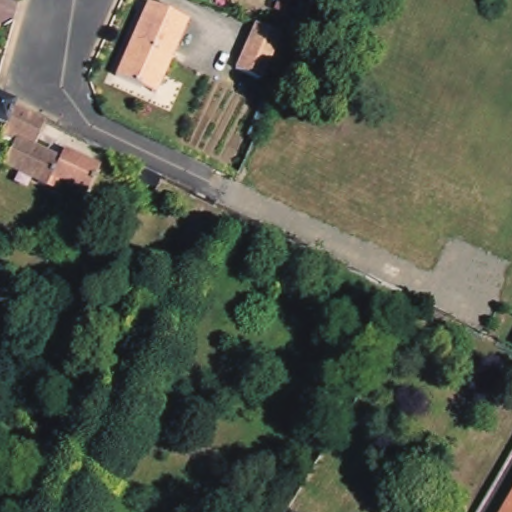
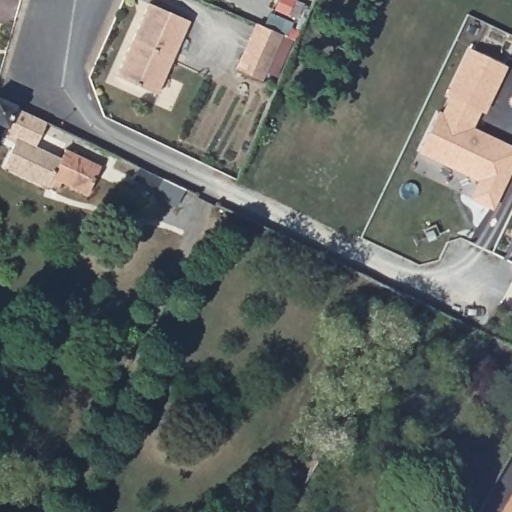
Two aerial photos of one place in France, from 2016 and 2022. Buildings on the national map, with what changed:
unchanged [(187,21),(155,94),(115,76),(147,3),(187,21)]
unchanged [(261,23),(286,34),(266,80),(240,69),(261,23)]
new [(437,111),(441,113),(449,97),(445,95),(467,48),(505,66),(482,113),(478,111),(470,127),(512,148),(512,165),(491,209),(468,198),(477,180),(417,152),(437,111)]
unchanged [(13,112),(44,126),(32,151),(58,163),(44,191),(2,172),(16,143),(2,137),(5,132),(13,112)]
demolished [(442,284),(462,294),(455,310),(420,295),(417,293),(426,276),(442,284)]
unchanged [(502,512),(512,494),(512,512),(502,512)]

